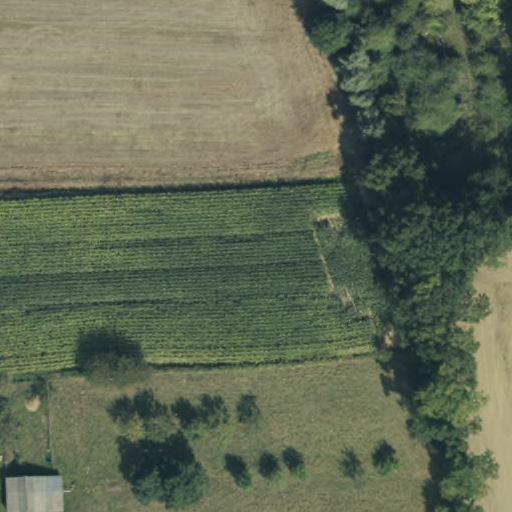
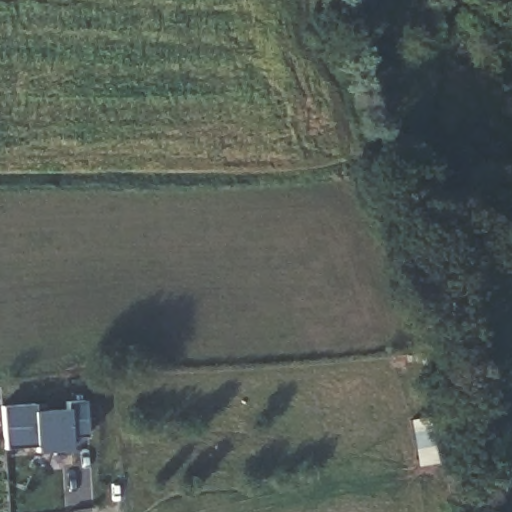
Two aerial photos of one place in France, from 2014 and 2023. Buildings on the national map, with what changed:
new [(69,437),(71,450),(37,453),(36,443),(3,447),(0,415),(0,408),(34,404),(35,411),(66,409),(65,402),(81,400),(87,436),(69,437)]
demolished [(11,483),(63,482),(64,504),(11,505),(11,483)]

